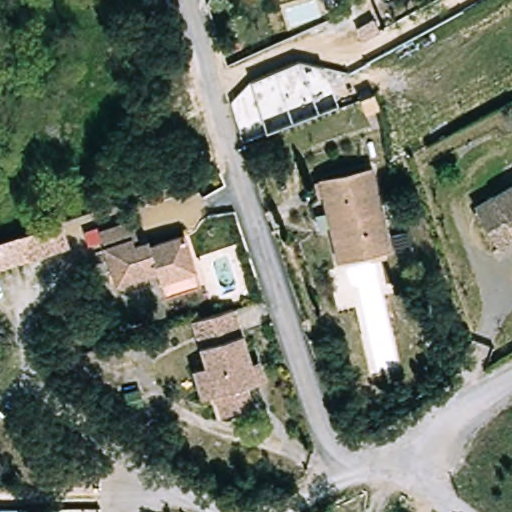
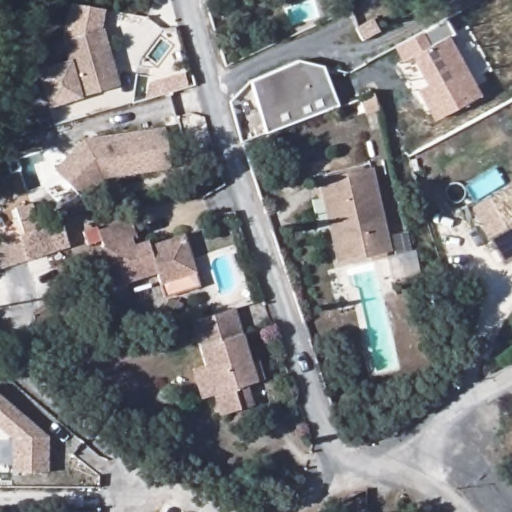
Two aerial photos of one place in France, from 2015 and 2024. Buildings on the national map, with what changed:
new [(62,41),(70,3),(106,10),(103,28),(62,41)]
new [(446,15),(454,31),(449,33),(481,93),(435,117),(418,86),(428,80),(414,53),(404,58),(395,43),(446,15)]
new [(78,98),(62,41),(103,28),(119,85),(78,98)]
new [(298,59),(324,61),(339,108),(266,128),(251,79),(298,59)]
new [(78,98),(46,108),(36,70),(67,60),(78,98)]
new [(165,126),(170,169),(102,179),(83,198),(53,170),(82,140),(165,126)]
unchanged [(337,268),(317,182),(372,172),(392,257),(337,268)]
unchanged [(472,213),(512,189),(512,244),(497,253),(472,213)]
unchanged [(62,222),(72,250),(0,273),(0,243),(62,222)]
unchanged [(139,248),(183,236),(195,275),(159,285),(156,275),(115,286),(100,232),(132,223),(139,248)]
unchanged [(239,417),(216,422),(209,400),(196,403),(188,376),(201,373),(186,325),(229,315),(252,388),(245,390),(252,414),(239,417)]
new [(10,472),(11,438),(0,429),(0,395),(48,436),(48,472),(10,472)]

